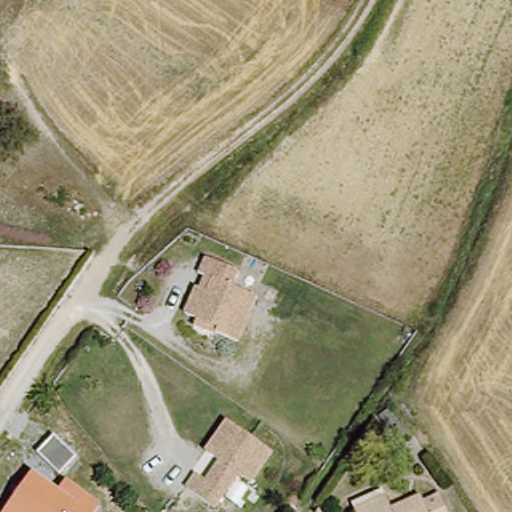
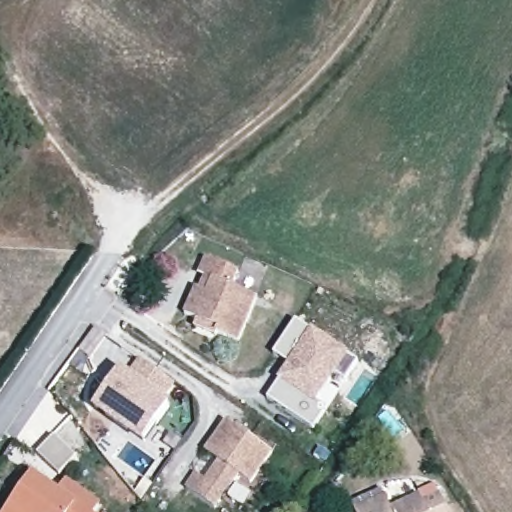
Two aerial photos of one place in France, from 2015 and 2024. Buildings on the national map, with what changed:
unchanged [(194,326),(197,316),(184,310),(195,285),(201,273),(198,272),(206,254),(239,269),(234,283),(259,293),(239,338),(215,329),(214,334),(194,326)]
new [(313,431),(265,400),(286,362),(273,353),(296,319),(311,328),(358,361),(313,431)]
new [(141,444),(92,409),(121,368),(129,374),(139,359),(176,385),(165,399),(170,404),(141,444)]
unchanged [(275,455),(253,485),(241,477),(217,507),(187,485),(196,472),(209,481),(222,463),(207,452),(229,422),(275,455)]
unchanged [(38,453),(55,436),(76,458),(59,475),(38,453)]
unchanged [(59,490),(69,479),(103,503),(97,512),(5,512),(33,471),(59,490)]
unchanged [(373,490),(388,510),(418,488),(423,494),(435,487),(449,508),(443,512),(350,512),(348,509),(373,490)]

